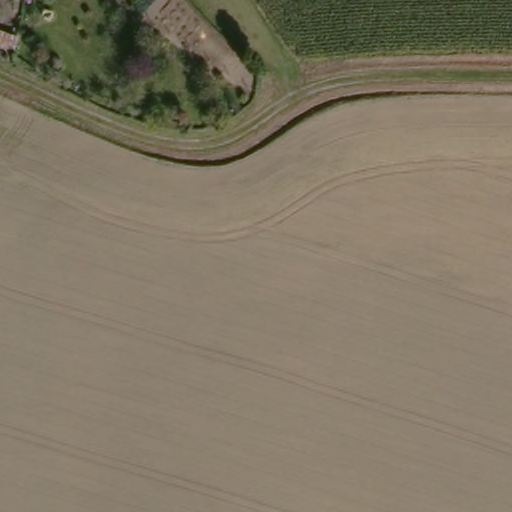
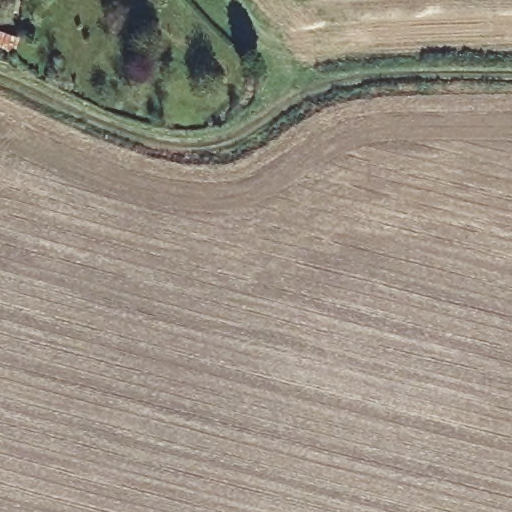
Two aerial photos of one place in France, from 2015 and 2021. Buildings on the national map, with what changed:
unchanged [(19,40),(14,54),(0,50),(0,34),(19,40)]

